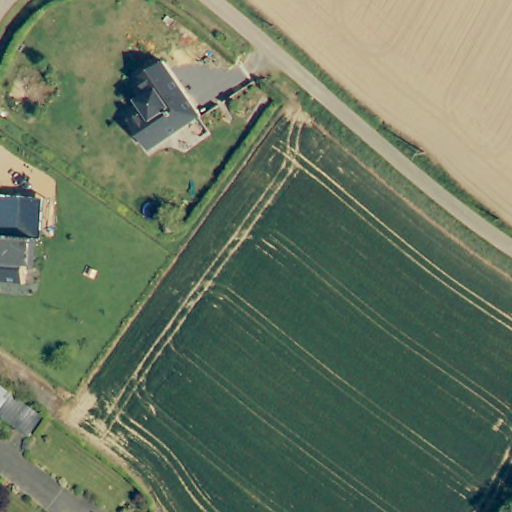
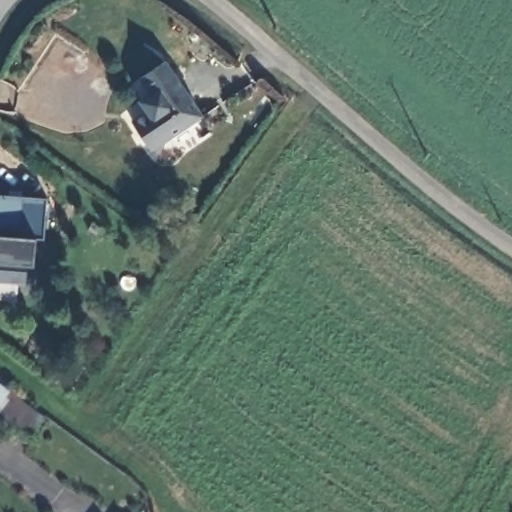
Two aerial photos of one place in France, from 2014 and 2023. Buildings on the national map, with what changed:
unchanged [(146,77),(170,62),(205,117),(155,150),(137,122),(153,111),(146,100),(151,97),(157,94),(146,77)]
unchanged [(46,198),(44,239),(35,239),(35,267),(25,266),(25,283),(0,281),(0,196),(46,198)]
unchanged [(47,415),(32,434),(0,409),(0,380),(47,415)]

